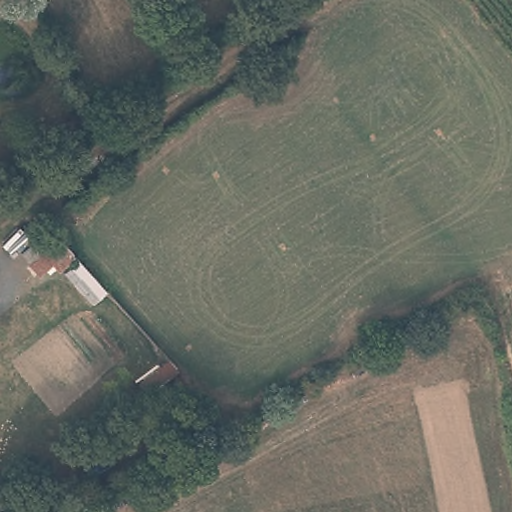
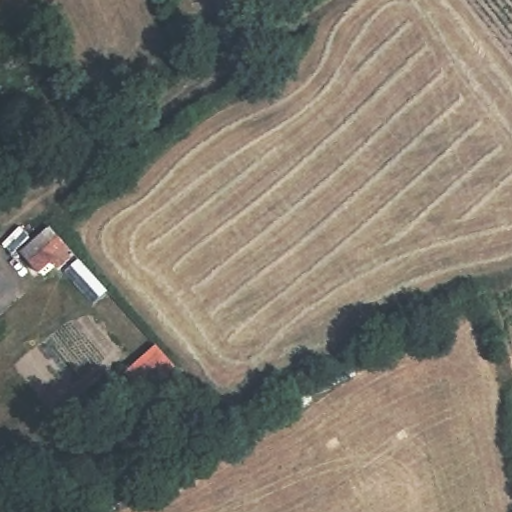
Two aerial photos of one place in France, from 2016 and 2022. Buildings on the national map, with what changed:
unchanged [(61,268),(55,262),(40,274),(23,253),(54,225),(79,252),(61,268)]
unchanged [(109,289),(94,301),(63,269),(79,258),(109,289)]

